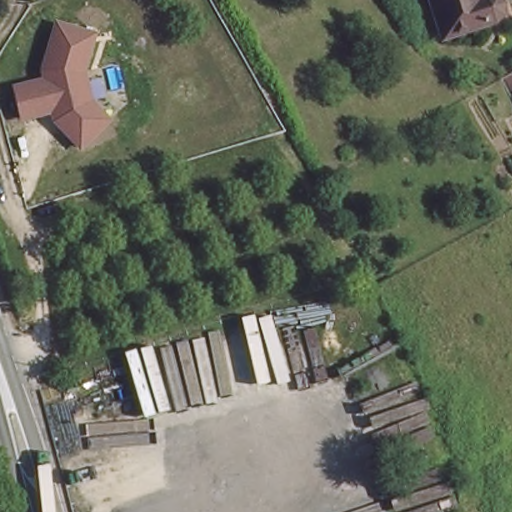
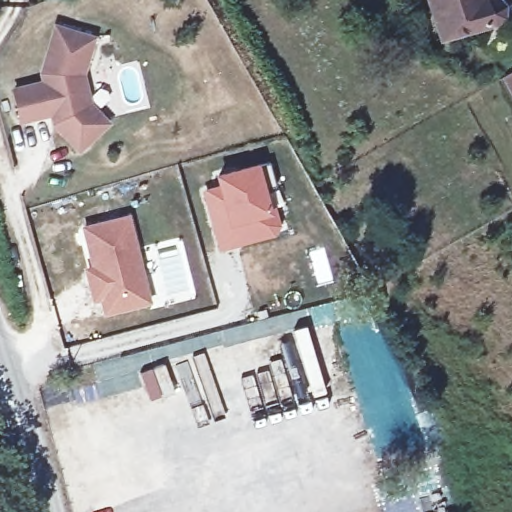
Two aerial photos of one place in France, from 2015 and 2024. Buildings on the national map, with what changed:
unchanged [(436,32),(426,0),(456,0),(468,21),(436,32)]
unchanged [(494,0),(495,8),(489,16),(475,20),(468,21),(456,0),(494,0)]
unchanged [(87,83),(92,101),(112,122),(79,154),(46,116),(18,121),(10,86),(46,77),(55,24),(99,36),(87,83)]
new [(219,184),(217,176),(254,165),(268,161),(273,183),(261,186),(267,209),(272,208),(276,225),(272,231),(221,248),(205,190),(219,184)]
new [(128,215),(152,305),(103,315),(100,302),(92,303),(82,266),(90,264),(80,225),(128,215)]

